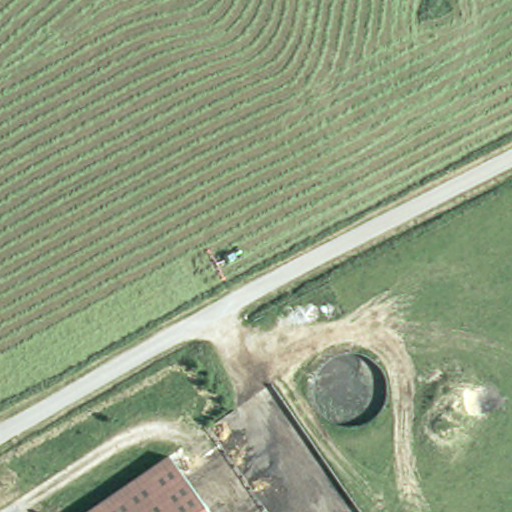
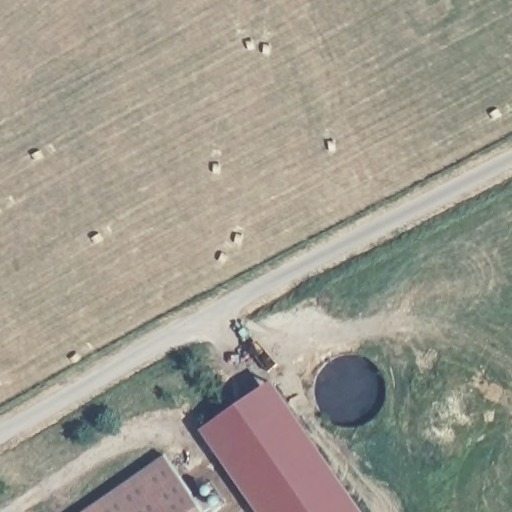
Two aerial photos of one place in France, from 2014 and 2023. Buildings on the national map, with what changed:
new [(280,377),(371,512),(258,512),(203,431),(280,377)]
unchanged [(168,463),(201,512),(95,512),(168,463)]

